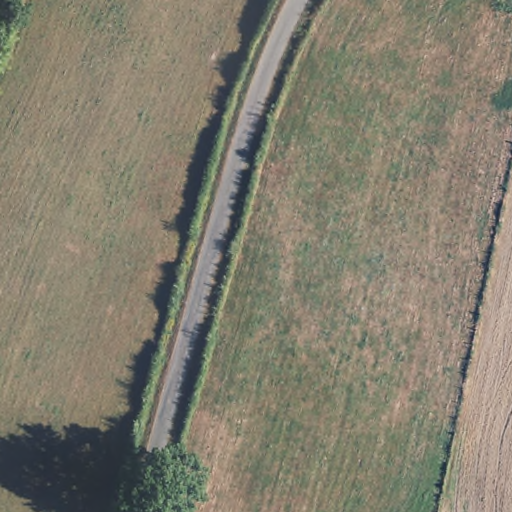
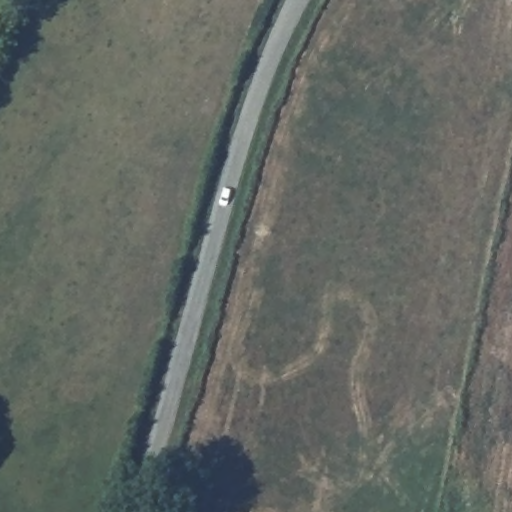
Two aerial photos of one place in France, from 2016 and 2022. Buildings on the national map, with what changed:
[]

